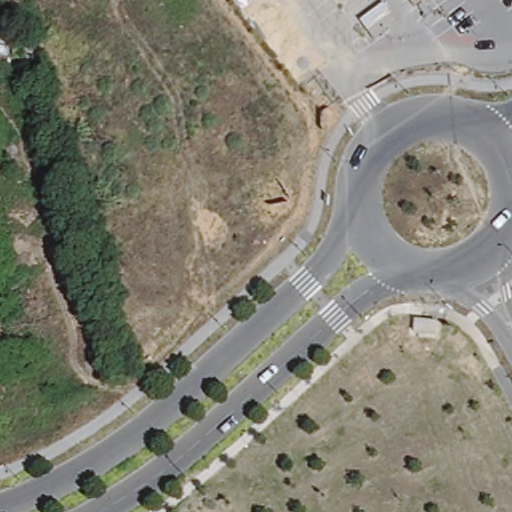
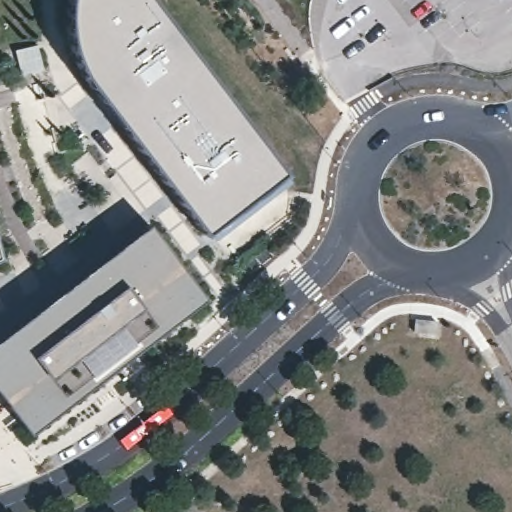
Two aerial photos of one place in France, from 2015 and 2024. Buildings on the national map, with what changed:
new [(278,170),(200,230),(86,70),(69,31),(68,0),(146,0),(278,170)]
new [(198,299),(27,432),(0,397),(0,334),(142,227),(198,299)]

